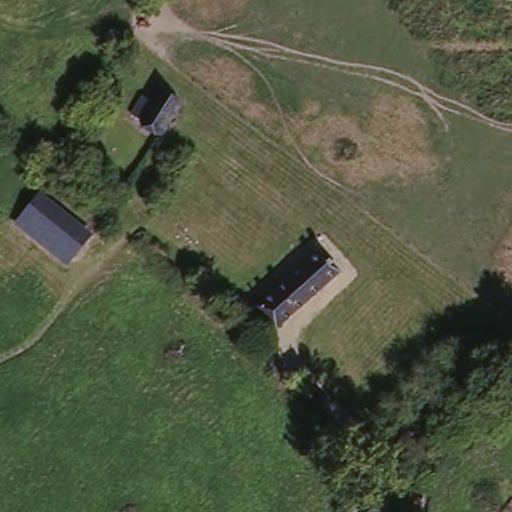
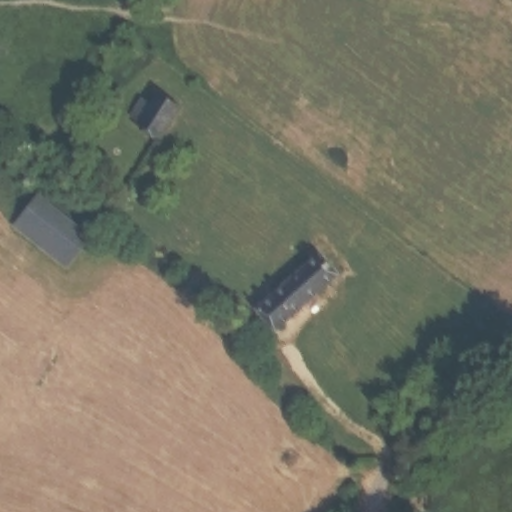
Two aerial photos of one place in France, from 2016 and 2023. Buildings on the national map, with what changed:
unchanged [(119,82),(132,88),(126,102),(111,96),(119,82)]
unchanged [(143,93),(155,100),(161,90),(185,105),(165,136),(130,116),(143,93)]
unchanged [(39,191),(91,235),(65,267),(12,226),(39,191)]
unchanged [(338,273),(275,327),(257,306),(320,252),(338,273)]

